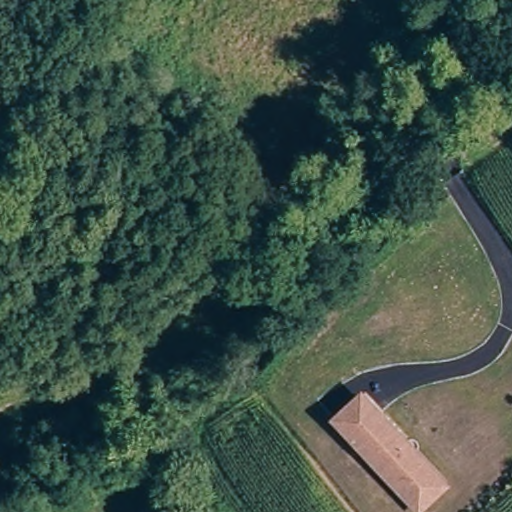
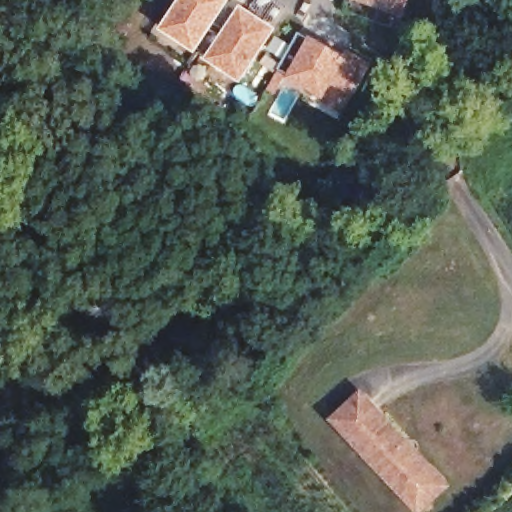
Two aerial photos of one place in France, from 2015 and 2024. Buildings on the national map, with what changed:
new [(196,52),(161,29),(180,0),(231,0),(196,52)]
new [(408,15),(362,0),(414,0),(408,15)]
new [(278,29),(242,80),(207,57),(242,6),(278,29)]
new [(310,38),(312,34),(348,54),(350,49),(372,63),(348,106),(344,104),(340,110),(322,97),(287,78),(290,73),(279,69),(300,32),(310,38)]
unchanged [(418,507),(407,496),(378,463),(338,417),(363,396),(425,466),(432,474),(442,486),(418,507)]

